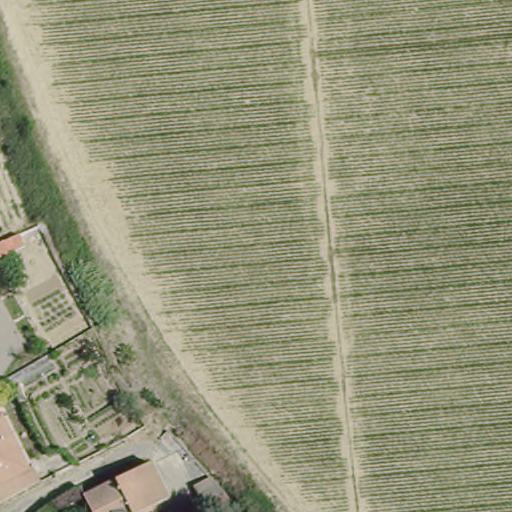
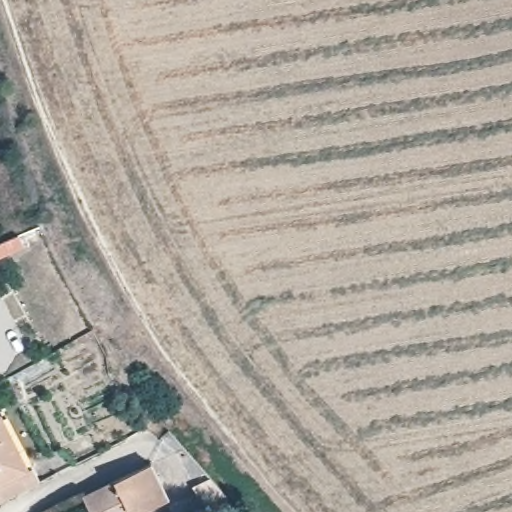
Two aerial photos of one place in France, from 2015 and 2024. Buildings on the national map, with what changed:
unchanged [(33,465),(41,478),(0,499),(0,411),(4,409),(33,465)]
unchanged [(144,510),(144,512),(92,512),(83,495),(152,464),(168,498),(144,510)]
unchanged [(203,505),(193,486),(212,477),(226,493),(235,508),(231,512),(218,512),(210,501),(203,505)]

